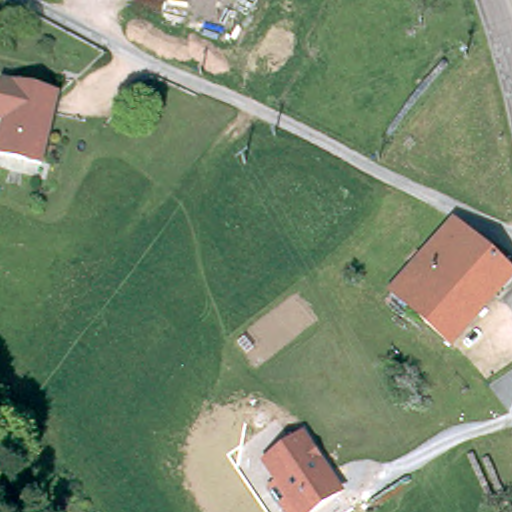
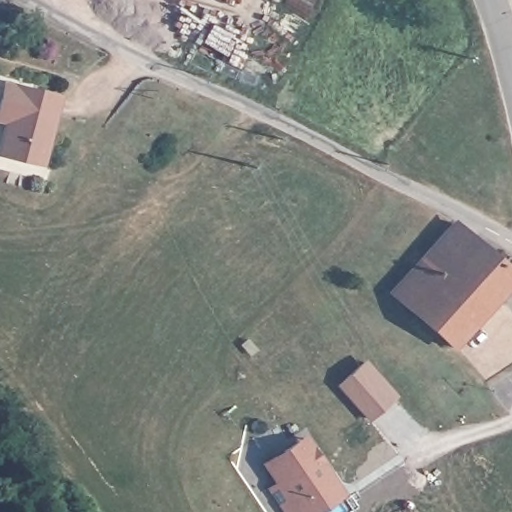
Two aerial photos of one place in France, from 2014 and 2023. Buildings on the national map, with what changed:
unchanged [(60,92),(42,160),(0,149),(8,115),(0,113),(0,99),(5,78),(60,92)]
unchanged [(453,219),(512,273),(512,277),(449,345),(409,309),(386,289),(406,268),(453,219)]
new [(398,395),(368,422),(335,385),(365,358),(398,395)]
unchanged [(305,432),(345,493),(319,512),(295,512),(263,462),(305,432)]

